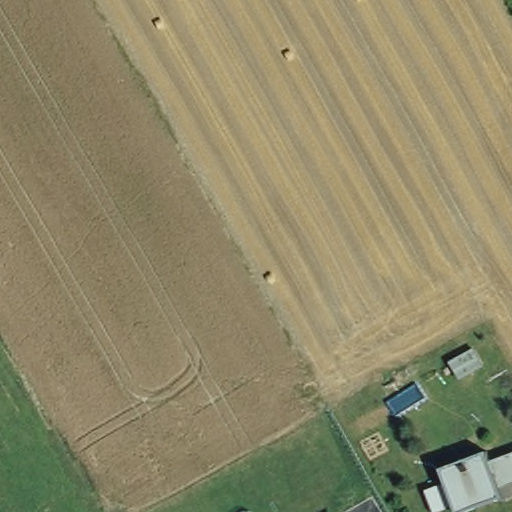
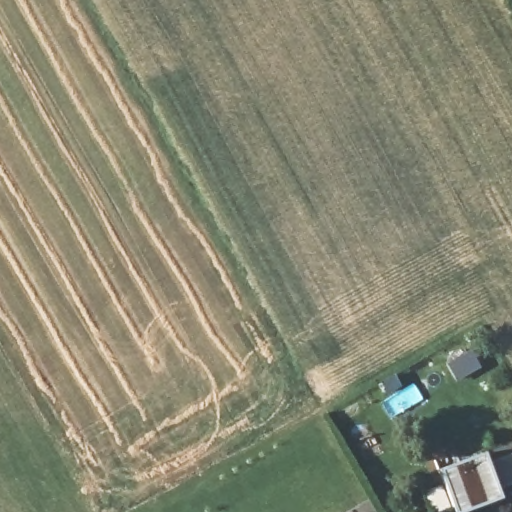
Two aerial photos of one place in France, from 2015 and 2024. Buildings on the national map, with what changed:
unchanged [(498,494),(457,512),(440,471),(486,452),(492,463),(512,455),(512,483),(498,488),(498,494)]

